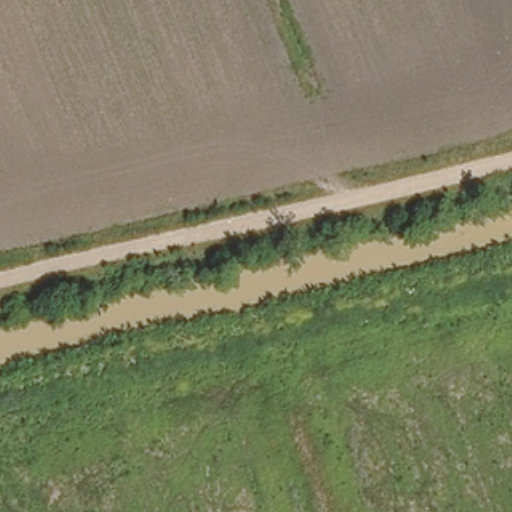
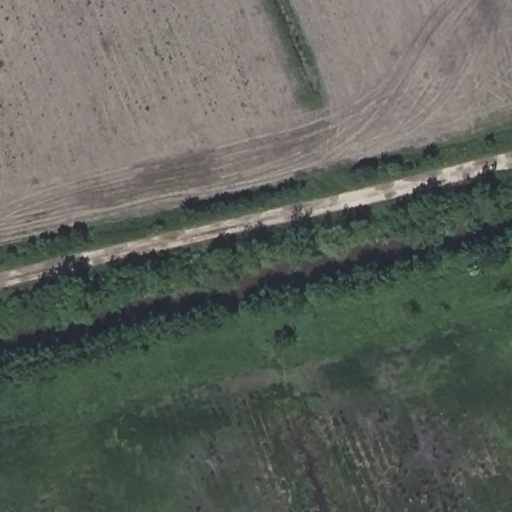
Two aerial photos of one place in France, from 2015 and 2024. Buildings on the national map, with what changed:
[]

